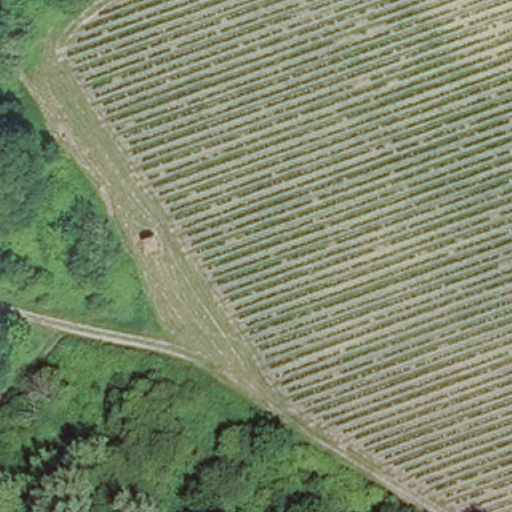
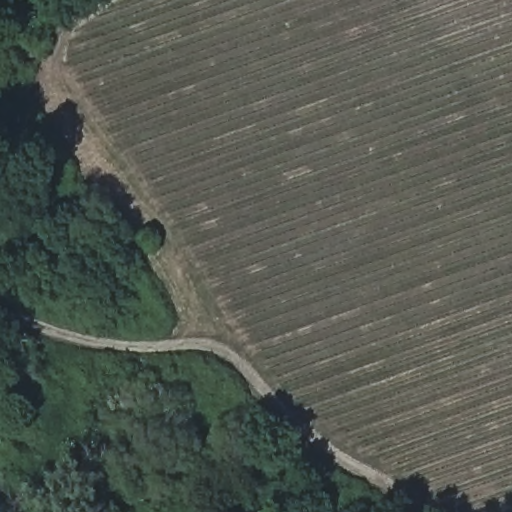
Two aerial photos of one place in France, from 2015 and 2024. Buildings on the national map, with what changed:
unchanged [(159,248),(144,256),(136,243),(153,234),(159,248)]

